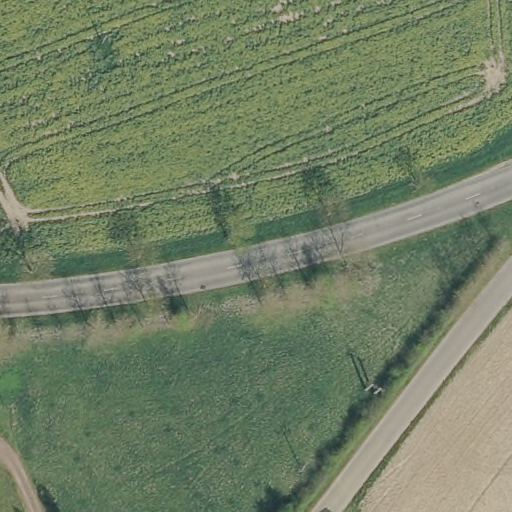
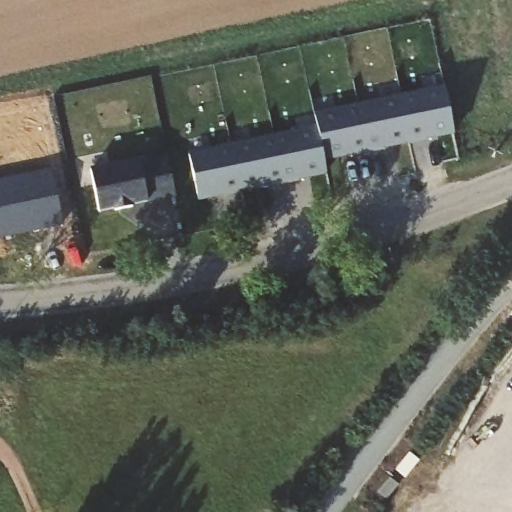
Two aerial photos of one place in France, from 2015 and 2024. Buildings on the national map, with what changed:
new [(188,153),(317,127),(314,113),(444,86),(455,135),(324,163),(326,174),(198,202),(188,153)]
new [(138,203),(138,206),(122,209),(121,207),(105,210),(96,169),(145,159),(145,160),(173,154),(182,193),(138,203)]
new [(0,238),(0,180),(52,169),(63,225),(0,238)]

